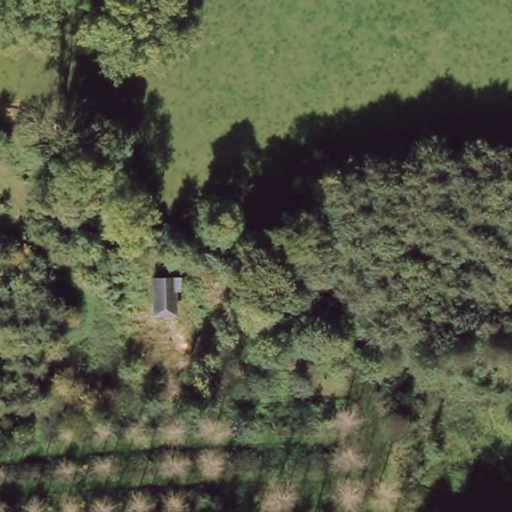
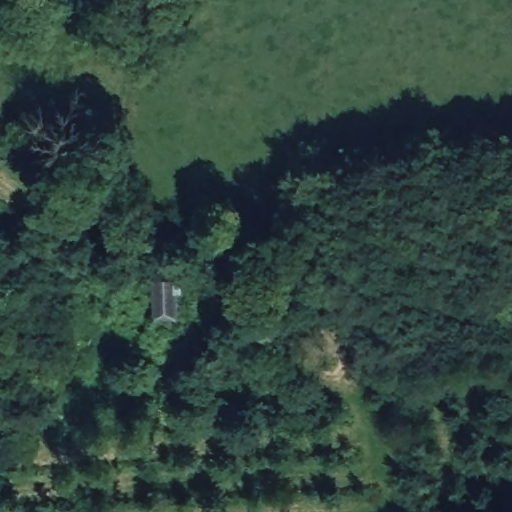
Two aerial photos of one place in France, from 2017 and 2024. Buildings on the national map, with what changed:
unchanged [(155,277),(174,278),(180,316),(162,319),(155,277)]

